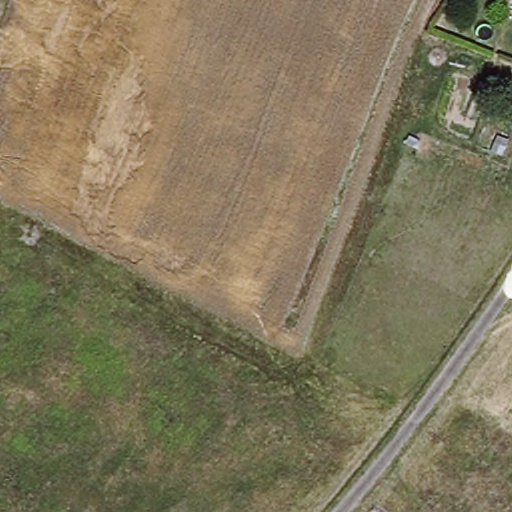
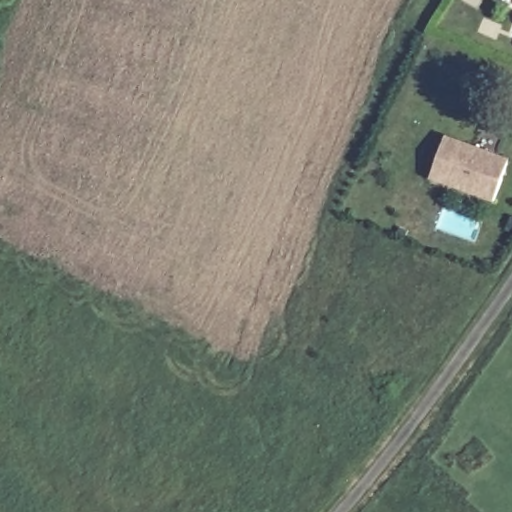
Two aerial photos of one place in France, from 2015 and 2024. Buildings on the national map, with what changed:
new [(512,158),(496,202),(429,178),(444,134),(512,158)]

